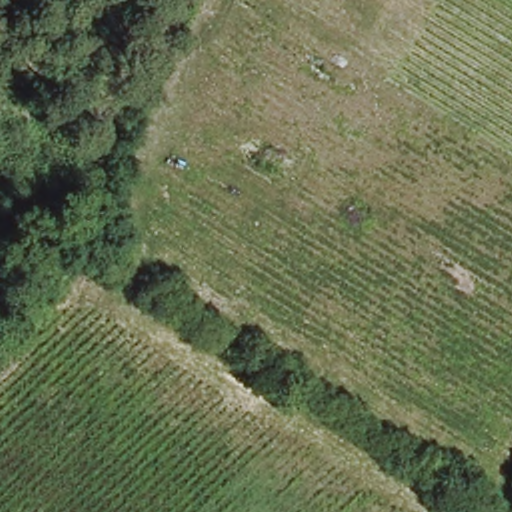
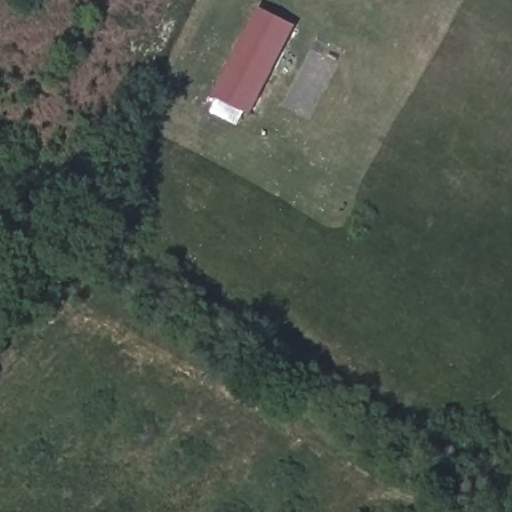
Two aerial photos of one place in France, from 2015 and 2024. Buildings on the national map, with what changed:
new [(252,116),(214,96),(260,7),(298,27),(252,116)]

